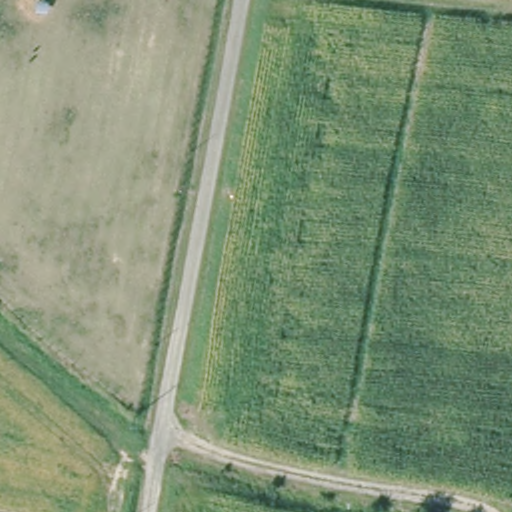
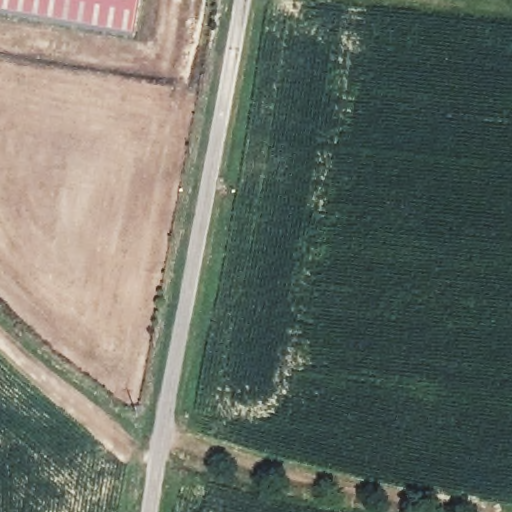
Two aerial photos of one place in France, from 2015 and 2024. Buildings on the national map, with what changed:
new [(133,37),(0,13),(0,0),(140,0),(133,37)]

